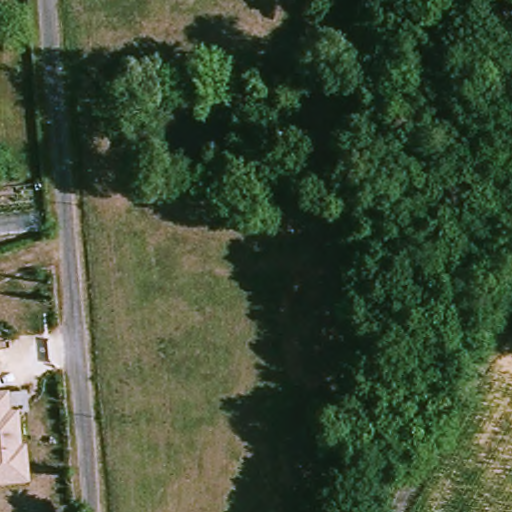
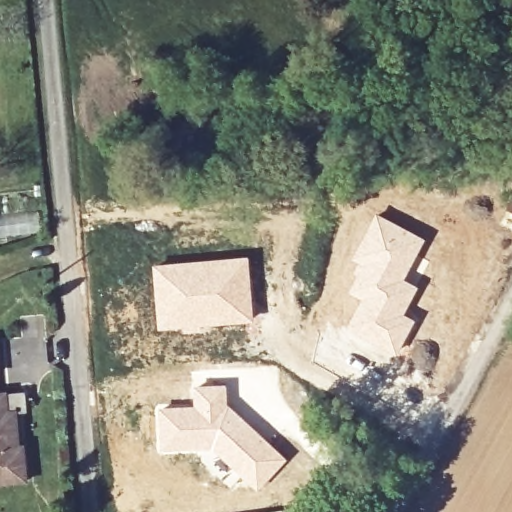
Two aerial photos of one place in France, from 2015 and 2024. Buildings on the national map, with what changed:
new [(362,299),(348,290),(362,264),(352,258),(377,212),(426,238),(406,278),(420,286),(405,314),(416,319),(392,362),(346,330),(362,299)]
new [(249,256),(255,322),(191,330),(157,331),(152,264),(249,256)]
unchanged [(0,375),(0,363),(1,375),(0,375)]
new [(194,405),(192,386),(227,383),(229,403),(288,459),(257,493),(242,481),(231,491),(202,464),(196,454),(156,455),(155,406),(194,405)]
unchanged [(30,413),(20,414),(22,444),(27,443),(31,482),(0,484),(0,391),(27,388),(30,413)]

